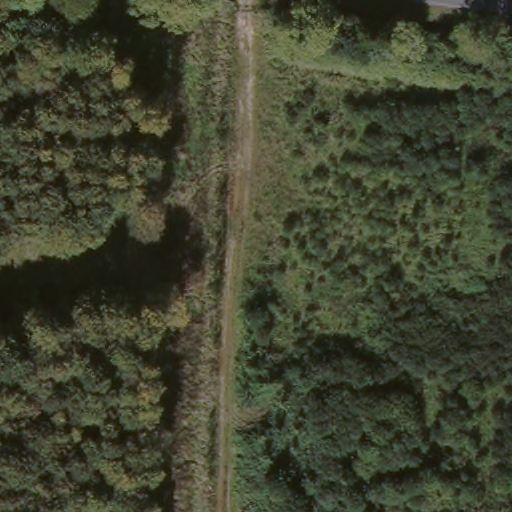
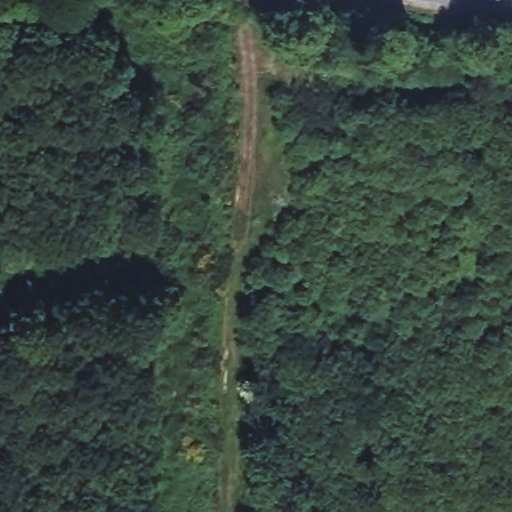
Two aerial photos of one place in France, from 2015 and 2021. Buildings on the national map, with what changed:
[]

